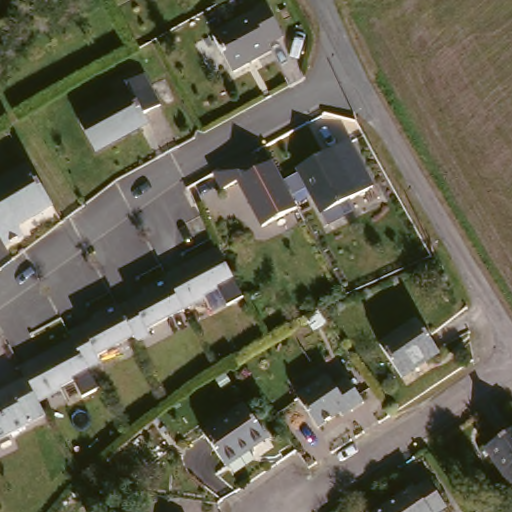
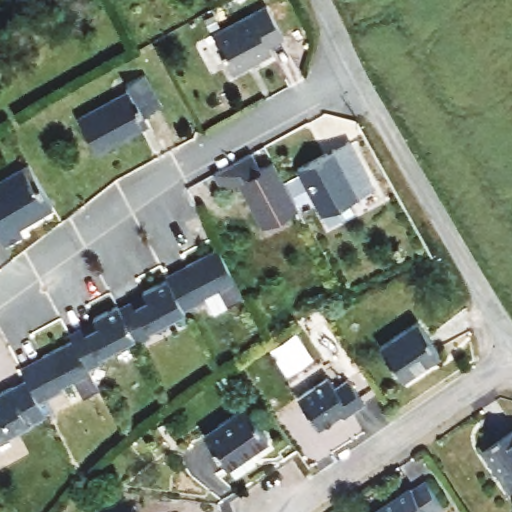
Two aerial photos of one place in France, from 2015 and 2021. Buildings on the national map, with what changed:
unchanged [(268,0),(278,0),(292,27),(278,35),(281,39),(241,60),(222,25),(268,0)]
unchanged [(220,4),(226,15),(219,19),(213,7),(220,4)]
unchanged [(81,112),(132,84),(129,77),(146,68),(163,99),(147,107),(145,120),(99,146),(81,112)]
unchanged [(343,135),(377,186),(331,216),(297,165),(343,135)]
unchanged [(262,167),(275,160),(300,206),(265,225),(241,180),(225,187),(216,171),(254,151),(262,167)]
unchanged [(0,220),(0,178),(37,159),(59,202),(23,220),(27,229),(9,238),(0,220)]
unchanged [(246,293),(230,302),(221,286),(207,293),(209,296),(187,307),(186,307),(150,326),(153,332),(139,340),(136,333),(100,353),(103,360),(90,367),(101,387),(84,396),(75,379),(63,389),(62,387),(41,401),(28,377),(25,370),(45,358),(43,355),(74,338),(74,337),(98,324),(95,317),(119,303),(123,310),(148,297),(145,290),(169,276),(170,277),(191,266),(188,262),(220,245),(246,293)]
unchanged [(324,317),(312,326),(303,312),(315,305),(324,317)]
unchanged [(421,320),(441,352),(399,377),(379,344),(421,320)]
unchanged [(319,374),(326,385),(339,377),(356,407),(342,415),(340,410),(309,428),(288,392),(319,374)]
unchanged [(48,413),(0,439),(0,397),(4,395),(2,392),(28,377),(41,401),(48,413)]
unchanged [(243,404),(263,438),(249,446),(250,462),(231,474),(204,430),(243,404)]
unchanged [(512,487),(486,447),(512,430),(512,487)]
unchanged [(414,487),(416,491),(427,483),(443,508),(438,512),(376,512),(414,487)]

